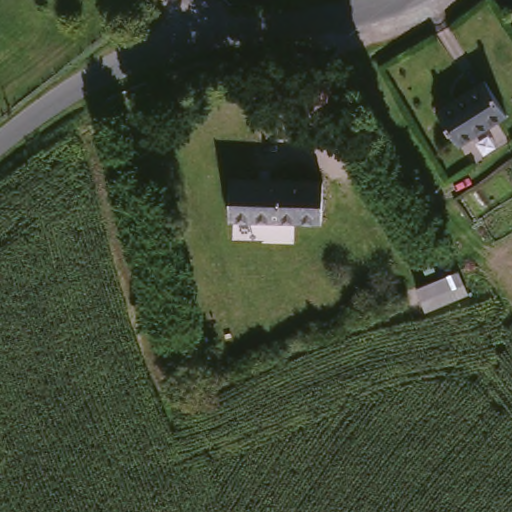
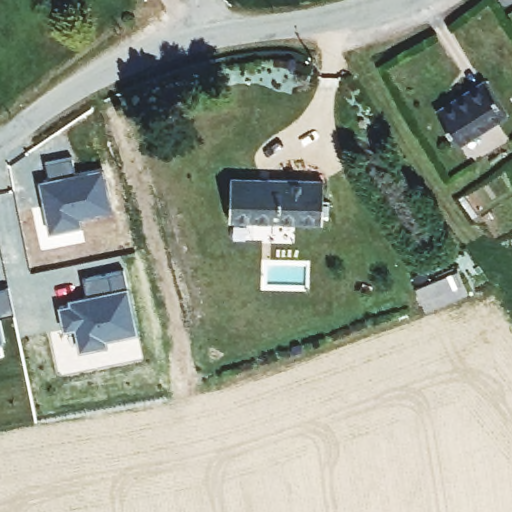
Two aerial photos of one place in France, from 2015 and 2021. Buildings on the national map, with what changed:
unchanged [(507,113),(457,150),(434,115),(483,79),(507,113)]
new [(46,200),(42,184),(47,183),(43,166),(70,160),(74,176),(101,170),(111,212),(79,220),(81,229),(49,235),(42,206),(46,200)]
unchanged [(313,225),(231,222),(234,177),(320,181),(313,225)]
unchanged [(427,311),(415,285),(453,270),(465,294),(427,311)]
new [(89,305),(84,282),(125,273),(139,335),(107,342),(109,348),(82,355),(77,331),(66,334),(61,311),(89,305)]
new [(8,289),(14,317),(0,320),(0,291),(8,289)]
new [(3,344),(0,345),(0,331),(3,344)]

